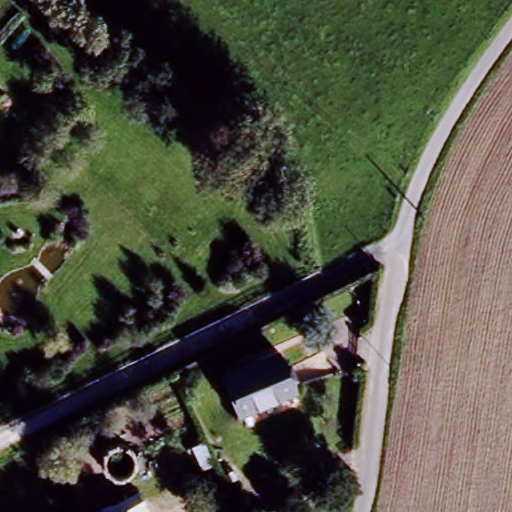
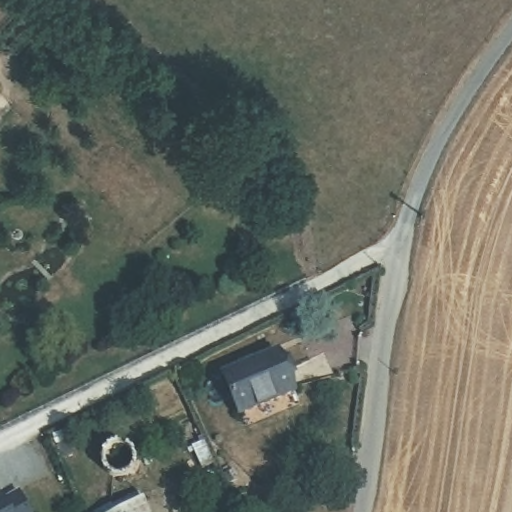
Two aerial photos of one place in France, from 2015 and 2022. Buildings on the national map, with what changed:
unchanged [(292,393),(241,417),(223,380),(274,355),(292,393)]
new [(10,502),(25,495),(32,512),(0,512),(0,501),(8,497),(10,502)]
unchanged [(147,512),(127,512),(144,504),(147,512)]

